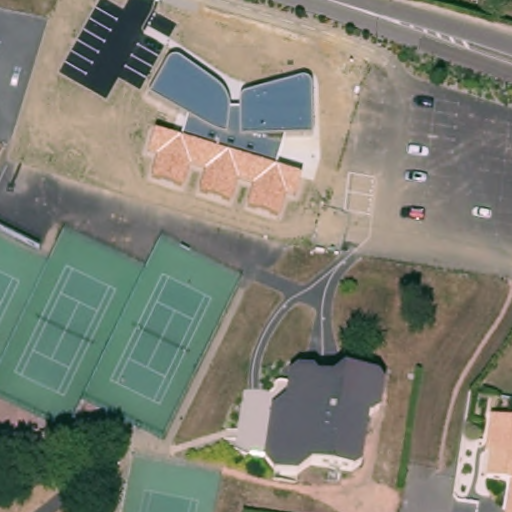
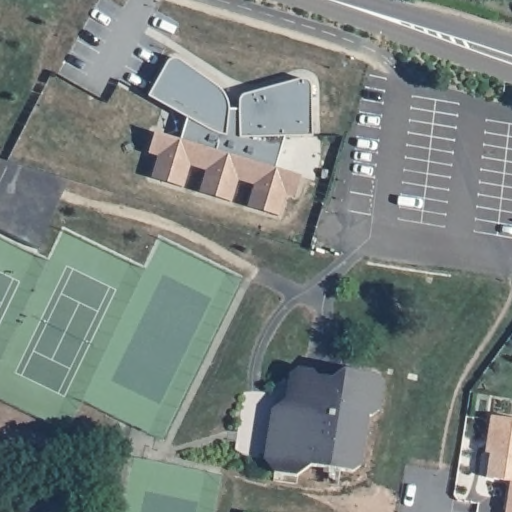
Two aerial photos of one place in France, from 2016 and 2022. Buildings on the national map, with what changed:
unchanged [(168,62),(174,59),(179,59),(221,90),(226,98),(227,110),(240,111),(239,102),(240,98),(244,95),(301,80),(306,81),(310,86),(311,90),(312,136),(286,137),(275,167),(301,176),(295,198),(285,196),(280,217),(247,209),(253,184),(236,179),(230,202),(200,193),(205,170),(189,166),(183,189),(150,179),(156,156),(148,153),(155,131),(180,141),(187,118),(149,96),(168,62)]
unchanged [(377,373),(383,381),(378,409),(370,415),(368,415),(360,463),(350,470),(309,464),(295,475),(273,472),(262,456),(270,408),(285,397),(288,373),(297,366),(313,368),(316,374),(330,377),(343,368),(377,373)]
unchanged [(490,477),(495,452),(489,452),(491,440),(495,415),(512,418),(512,480),(490,477)]
unchanged [(512,497),(512,512),(510,512),(510,510),(512,497)]

